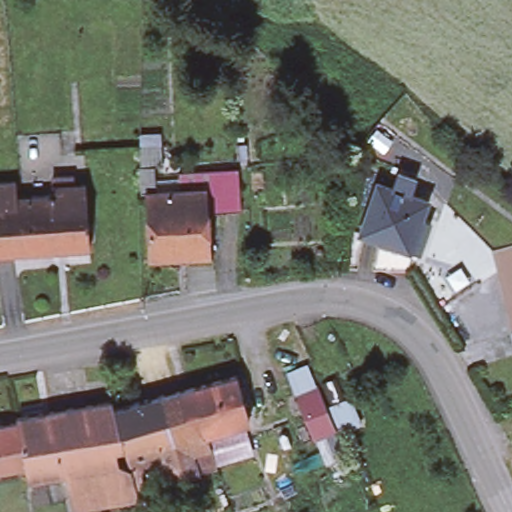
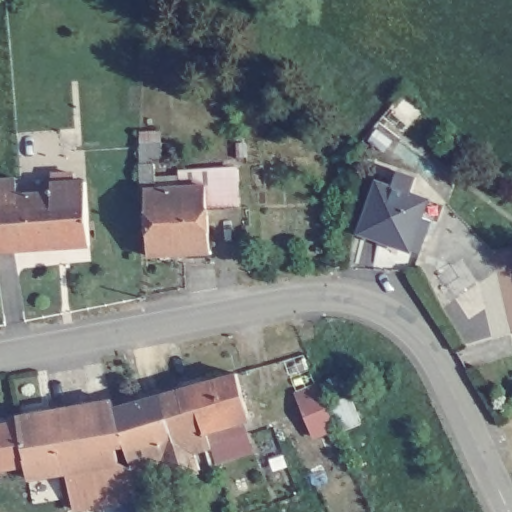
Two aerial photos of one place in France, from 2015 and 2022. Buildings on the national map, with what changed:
unchanged [(143,187),(142,161),(141,126),(165,125),(165,161),(157,161),(158,186),(180,185),(183,252),(150,254),(146,186),(143,187)]
unchanged [(210,250),(183,252),(180,185),(198,184),(198,169),(222,166),(222,168),(239,167),(241,205),(225,206),(208,206),(210,250)]
unchanged [(392,188),(397,172),(416,179),(411,195),(429,200),(423,217),(434,221),(423,254),(361,234),(378,183),(392,188)]
unchanged [(0,250),(0,178),(9,177),(10,194),(19,193),(22,249),(0,250)]
unchanged [(45,191),(45,182),(80,181),(84,245),(51,246),(48,191),(45,191)]
unchanged [(45,191),(48,191),(51,246),(22,249),(19,193),(45,191)]
unchanged [(190,470),(163,478),(160,465),(156,455),(151,457),(133,395),(155,390),(163,387),(173,385),(218,372),(231,369),(243,415),(237,416),(240,430),(205,441),(190,445),(185,446),(191,469),(190,470)]
unchanged [(312,383),(324,405),(349,394),(360,423),(338,432),(336,430),(311,438),(293,392),(312,383)]
unchanged [(107,395),(109,402),(133,395),(151,457),(126,465),(125,465),(132,490),(81,500),(68,503),(62,465),(55,466),(45,405),(102,395),(107,395)]
unchanged [(12,415),(11,411),(45,405),(55,466),(23,472),(21,457),(15,415),(12,415)]
unchanged [(15,415),(21,457),(0,462),(0,418),(12,415),(15,415)]

